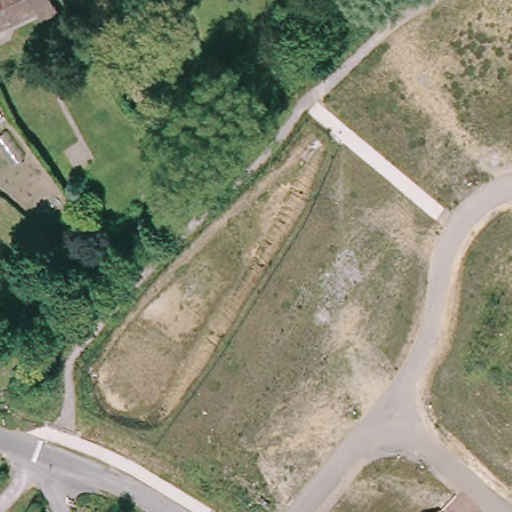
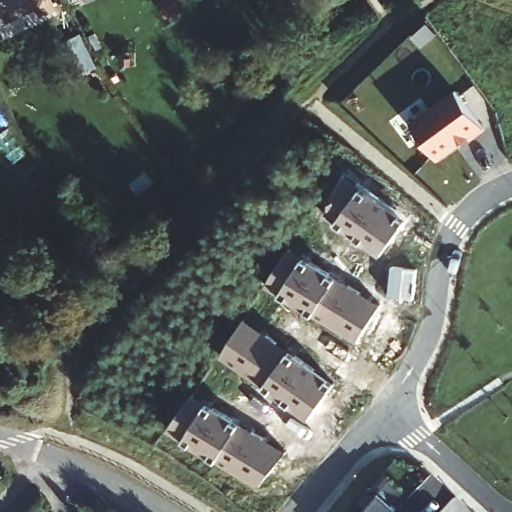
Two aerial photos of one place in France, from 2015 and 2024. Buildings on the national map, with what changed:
unchanged [(56,7),(42,14),(37,5),(0,24),(0,0),(52,0),(56,7)]
new [(82,65),(67,34),(77,29),(92,60),(82,65)]
new [(485,129),(439,159),(410,120),(455,89),(485,129)]
new [(380,254),(336,222),(340,216),(328,208),(347,172),(408,218),(380,254)]
new [(384,301),(359,342),(280,295),(282,291),(269,283),(290,246),(384,301)]
new [(335,381),(308,421),(262,389),(265,384),(222,355),(247,315),(335,381)]
new [(287,450),(258,487),(170,430),(195,391),(287,450)]
new [(398,512),(357,512),(376,491),(398,512)]

